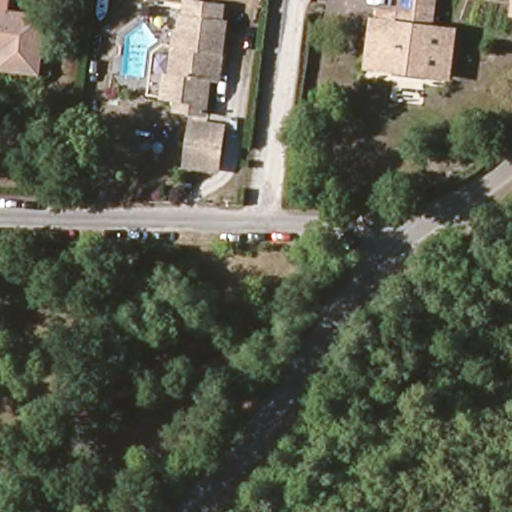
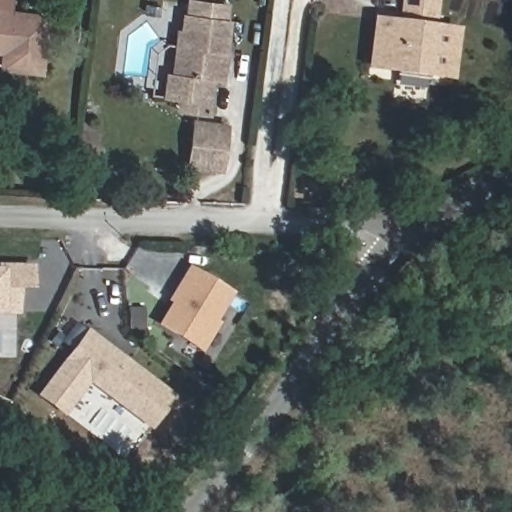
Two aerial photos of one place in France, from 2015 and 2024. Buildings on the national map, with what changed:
unchanged [(50,16),(43,77),(0,72),(0,0),(12,0),(10,11),(50,16)]
unchanged [(221,80),(212,79),(207,114),(192,112),(193,101),(164,97),(167,76),(172,77),(178,33),(181,34),(183,17),(186,18),(189,0),(227,5),(225,22),(228,23),(221,80)]
unchanged [(420,74),(420,69),(392,65),(392,70),(369,67),(374,21),(410,25),(412,10),(397,9),(399,0),(432,0),(428,27),(452,30),(446,77),(420,74)]
unchanged [(214,170),(183,165),(187,132),(205,135),(206,125),(220,127),(214,170)]
new [(27,283),(14,282),(13,310),(0,309),(0,264),(28,265),(27,283)]
new [(170,299),(167,296),(186,265),(226,290),(209,318),(213,321),(197,346),(157,321),(170,299)]
new [(85,330),(170,395),(147,424),(86,377),(60,411),(37,392),(85,330)]

